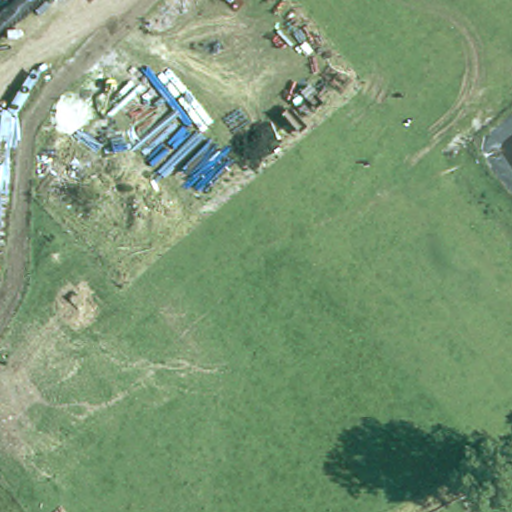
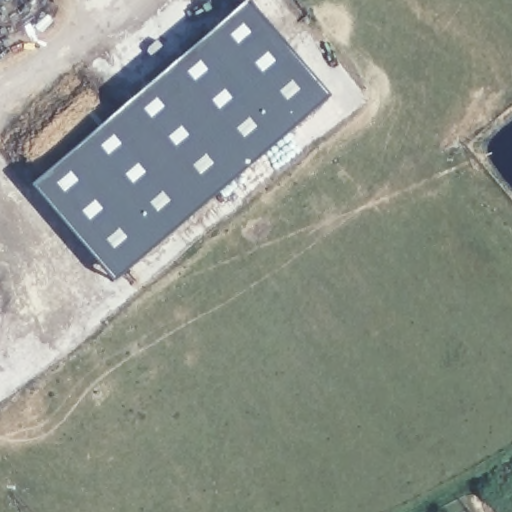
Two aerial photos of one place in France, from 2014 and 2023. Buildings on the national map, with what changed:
unchanged [(84,1),(84,0),(85,0),(84,1)]
new [(330,99),(112,284),(28,187),(245,1),(330,99)]

